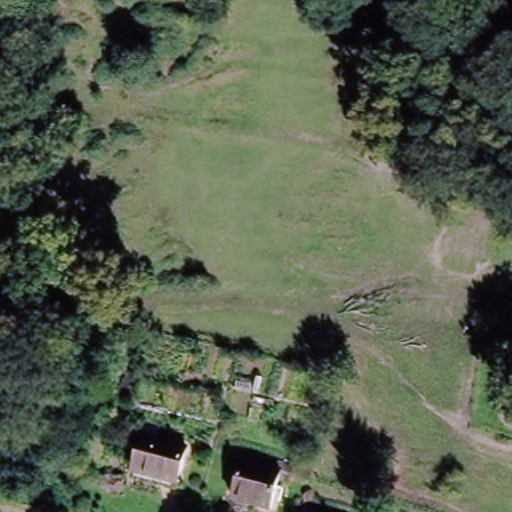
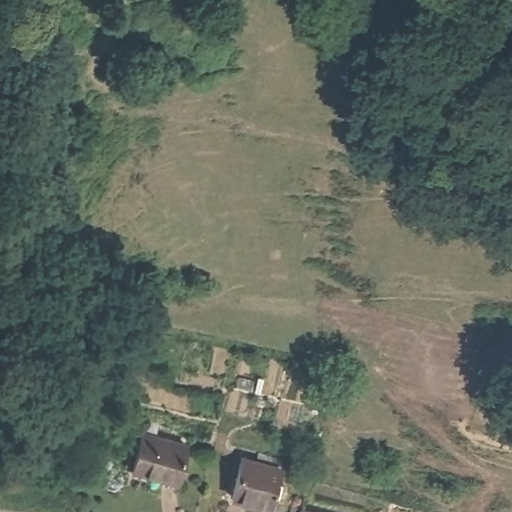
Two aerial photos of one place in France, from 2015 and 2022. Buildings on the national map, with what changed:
unchanged [(145,438),(188,449),(180,484),(136,473),(145,438)]
unchanged [(245,465),(280,475),(270,512),(268,512),(234,502),(245,465)]

